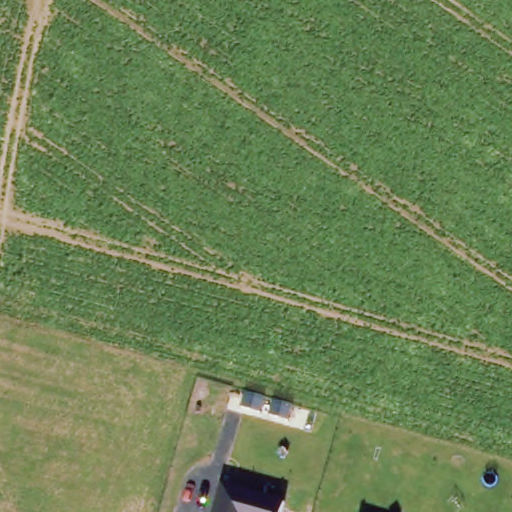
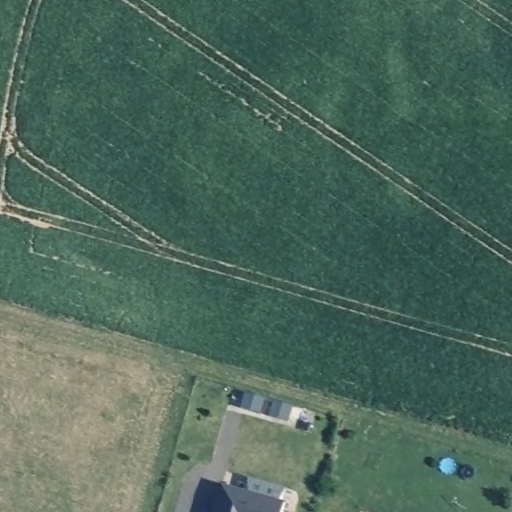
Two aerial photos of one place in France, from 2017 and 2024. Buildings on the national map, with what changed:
unchanged [(214,512),(222,484),(285,502),(282,512),(214,512)]

